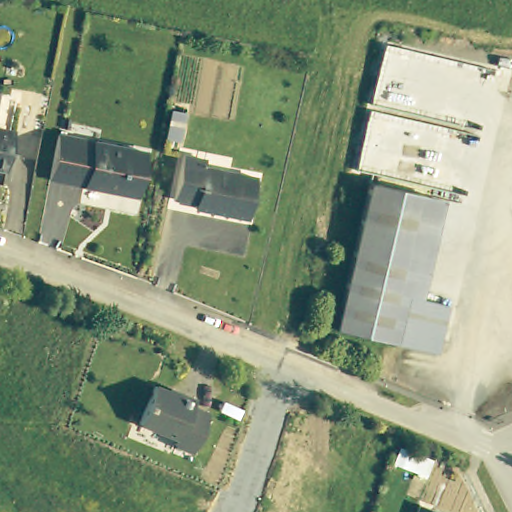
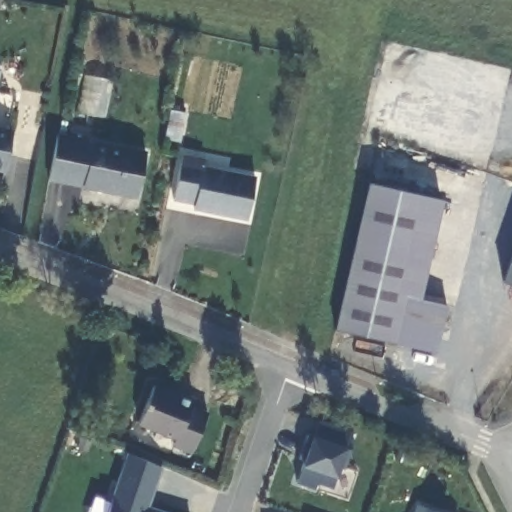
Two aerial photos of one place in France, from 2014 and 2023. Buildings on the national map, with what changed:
unchanged [(0,90),(0,87),(1,88),(0,90)]
unchanged [(189,116),(183,145),(168,142),(174,114),(189,116)]
unchanged [(7,169),(0,167),(0,125),(16,129),(7,169)]
unchanged [(151,151),(144,194),(55,179),(60,149),(63,135),(151,151)]
unchanged [(209,157),(208,165),(260,175),(252,217),(198,206),(199,201),(178,197),(187,153),(209,157)]
unchanged [(436,193),(423,247),(364,235),(376,180),(436,193)]
unchanged [(423,247),(413,292),(455,301),(444,348),(345,325),(364,235),(423,247)]
unchanged [(193,402),(210,408),(195,447),(177,440),(180,434),(141,419),(156,381),(179,391),(180,388),(196,395),(193,402)]
new [(347,447),(337,477),(334,489),(317,482),(315,488),(296,481),(304,464),(314,434),(319,420),(351,430),(347,447)]
new [(170,512),(107,512),(127,452),(162,466),(149,505),(170,512)]
unchanged [(420,503),(444,512),(416,512),(420,503)]

